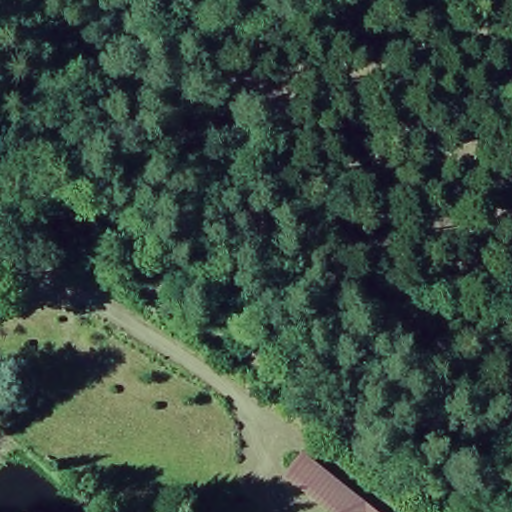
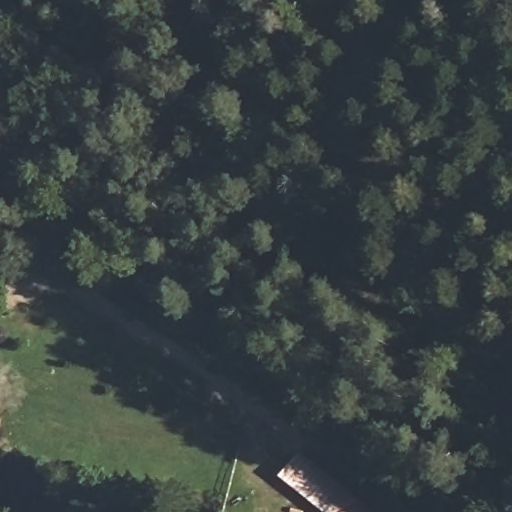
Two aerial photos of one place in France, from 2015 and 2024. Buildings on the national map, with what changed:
unchanged [(365,512),(319,512),(279,479),(296,454),(365,512)]

